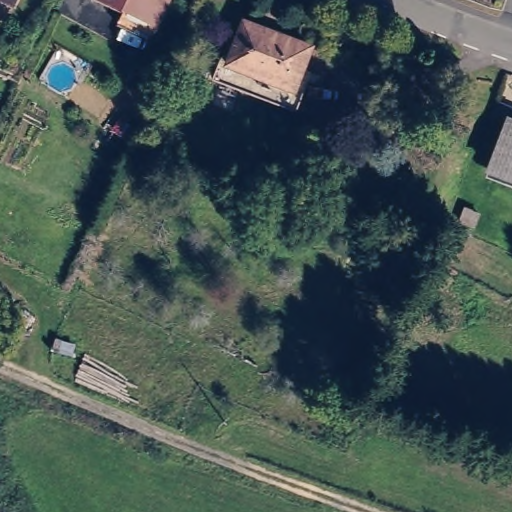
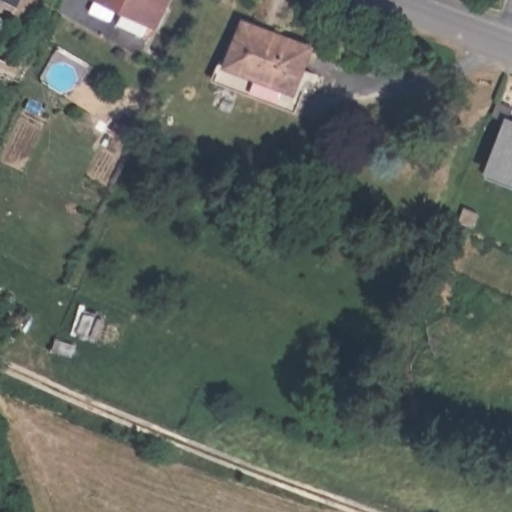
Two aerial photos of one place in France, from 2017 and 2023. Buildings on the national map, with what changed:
unchanged [(116,0),(165,0),(158,17),(116,0)]
unchanged [(317,37),(303,79),(309,81),(304,97),(222,66),(229,49),(236,53),(254,11),(317,37)]
unchanged [(510,116),(512,117),(512,172),(489,163),(510,116)]

